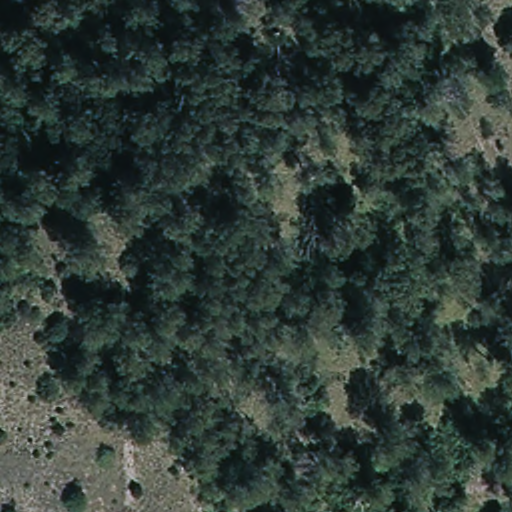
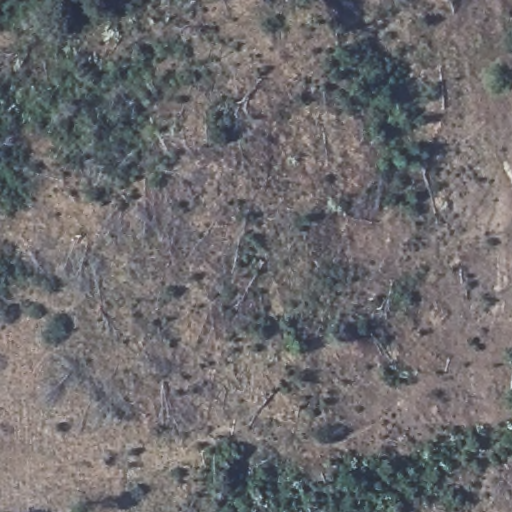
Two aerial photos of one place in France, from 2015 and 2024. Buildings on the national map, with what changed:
[]

